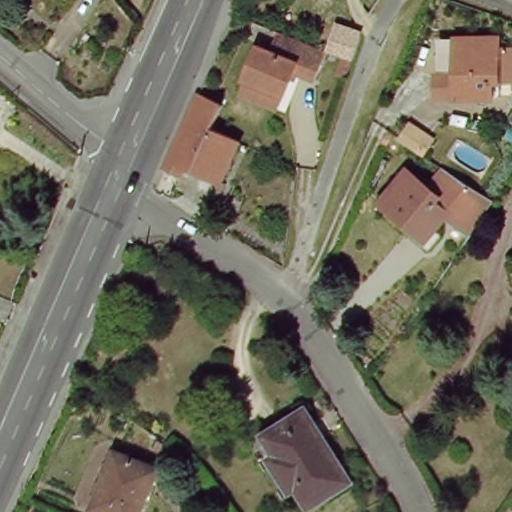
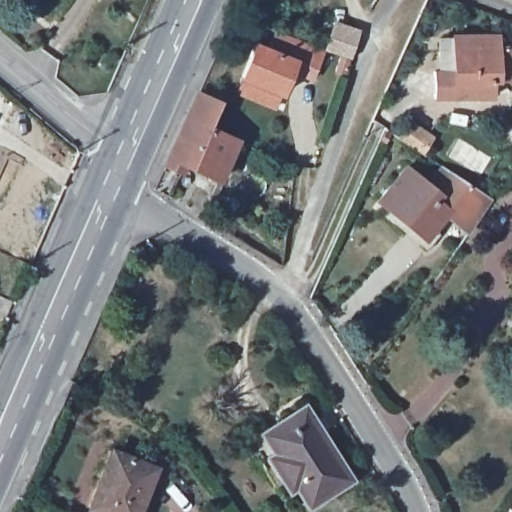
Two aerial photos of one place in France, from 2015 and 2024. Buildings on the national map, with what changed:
unchanged [(237,92),(243,78),(256,44),(269,49),(276,30),(326,50),(315,78),(293,69),(283,94),(278,108),(237,92)]
unchanged [(502,35),(502,79),(495,79),(496,96),(440,97),(439,72),(444,72),(444,52),(458,52),(457,36),(502,35)]
unchanged [(347,75),(338,72),(343,57),(352,60),(347,75)]
unchanged [(188,118),(199,93),(222,103),(211,128),(238,140),(221,181),(186,164),(182,172),(166,165),(188,118)]
unchanged [(410,122),(432,137),(423,152),(400,137),(410,122)]
unchanged [(431,240),(427,245),(404,226),(390,215),(395,210),(378,196),(406,162),(427,180),(443,161),(492,193),(468,227),(445,209),(433,224),(440,229),(431,240)]
unchanged [(359,480),(317,505),(308,491),(292,500),(269,463),(257,444),(272,434),(315,408),(359,480)]
unchanged [(68,482),(71,483),(86,447),(126,463),(106,512),(82,512),(60,503),(68,482)]

